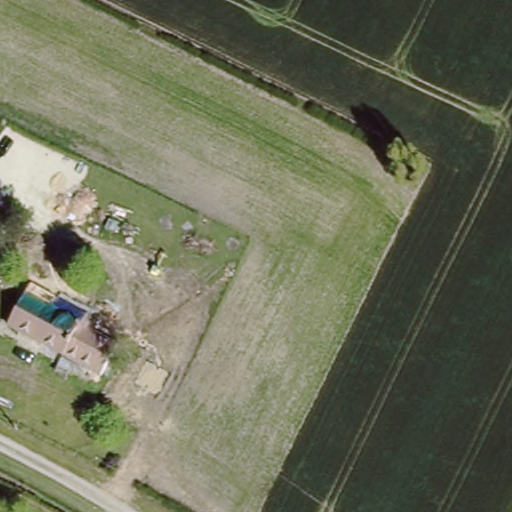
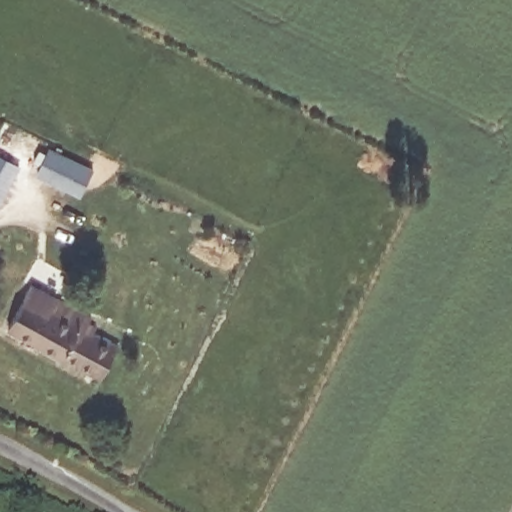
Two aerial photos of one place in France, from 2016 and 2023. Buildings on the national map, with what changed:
new [(48,150),(94,171),(82,196),(36,175),(48,150)]
new [(16,167),(0,197),(0,158),(16,167)]
unchanged [(83,315),(78,325),(120,347),(103,377),(7,325),(30,285),(83,315)]

